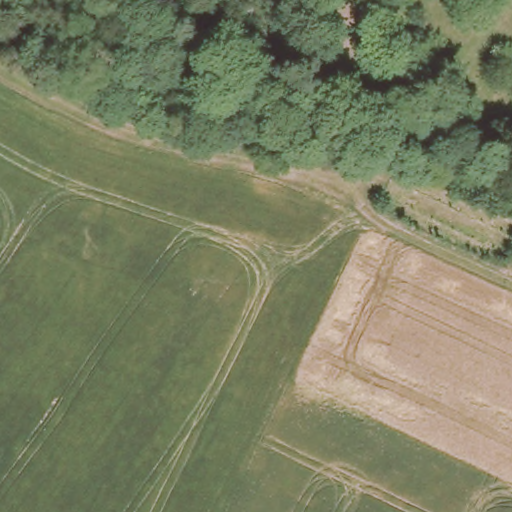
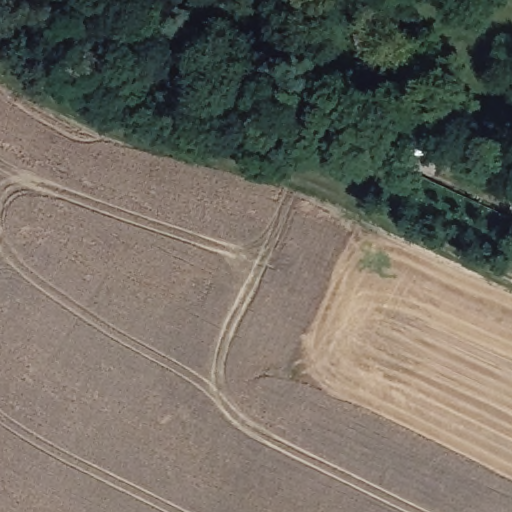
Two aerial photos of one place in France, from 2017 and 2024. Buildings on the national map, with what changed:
unchanged [(434,113),(430,135),(415,133),(419,111),(434,113)]

